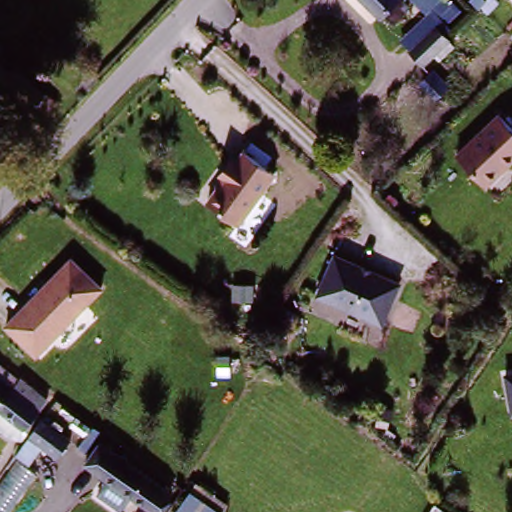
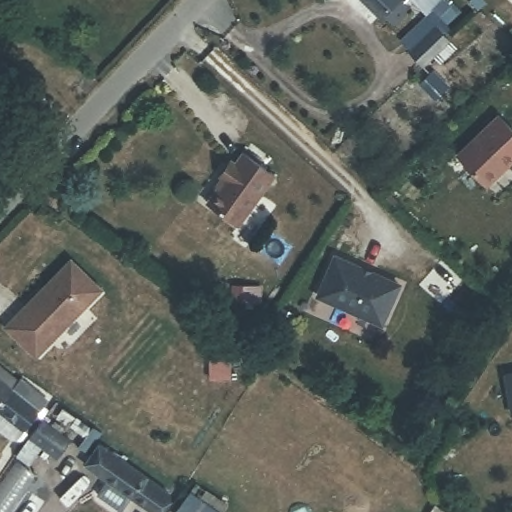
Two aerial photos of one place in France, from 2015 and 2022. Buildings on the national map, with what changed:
unchanged [(382,30),(370,18),(351,0),(405,0),(408,3),(382,30)]
unchanged [(393,59),(425,25),(439,39),(407,73),(393,59)]
unchanged [(47,95),(30,117),(0,96),(0,68),(4,63),(47,95)]
unchanged [(512,171),(487,194),(452,157),(499,114),(512,128),(512,171)]
unchanged [(279,171),(242,229),(206,208),(248,156),(279,171)]
unchanged [(331,256),(397,284),(379,327),(313,298),(331,256)]
unchanged [(105,290),(37,360),(8,334),(73,260),(105,290)]
unchanged [(14,379),(35,393),(26,409),(17,423),(0,412),(0,370),(14,379)]
unchanged [(512,418),(507,373),(512,373),(512,418)]
unchanged [(72,436),(54,459),(37,444),(53,418),(72,436)]
unchanged [(174,495),(162,512),(161,512),(81,459),(94,441),(174,495)]
unchanged [(208,512),(192,512),(197,505),(208,512)]
unchanged [(139,512),(142,508),(147,512),(139,512)]

